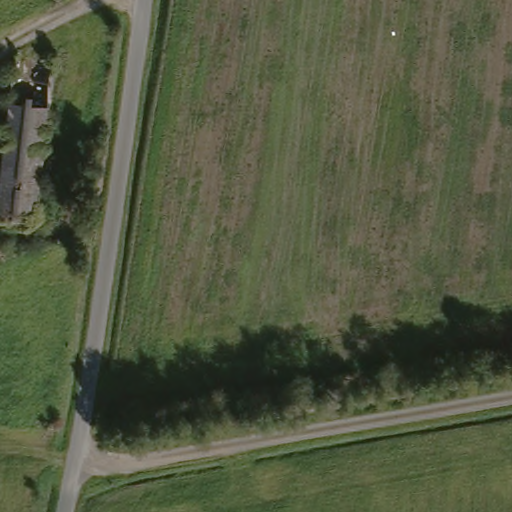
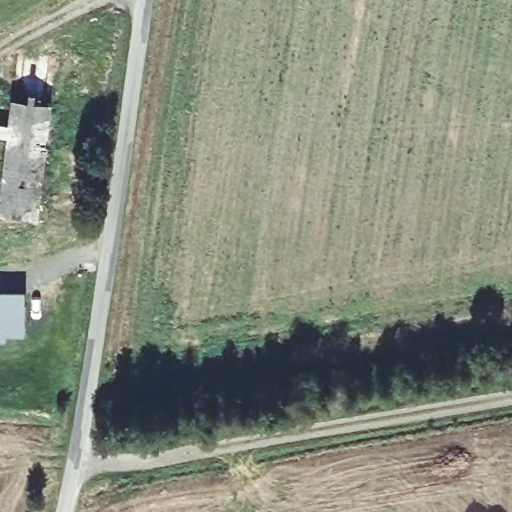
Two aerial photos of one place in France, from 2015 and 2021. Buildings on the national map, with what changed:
unchanged [(43,220),(4,215),(15,139),(4,136),(6,124),(16,124),(25,53),(62,56),(43,220)]
new [(25,292),(25,332),(5,332),(5,337),(0,337),(0,292),(25,292)]

